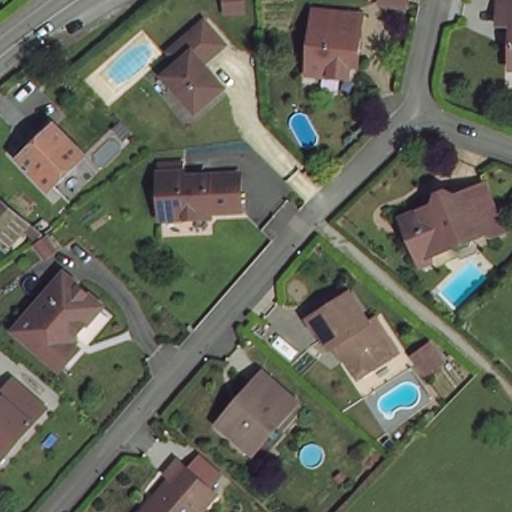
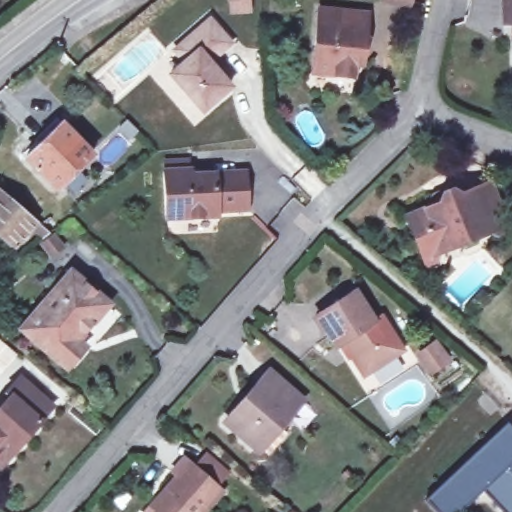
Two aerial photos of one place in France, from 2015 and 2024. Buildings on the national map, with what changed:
unchanged [(223,10),(223,0),(250,0),(251,10),(223,10)]
unchanged [(407,5),(386,0),(408,0),(408,3),(407,5)]
unchanged [(500,27),(500,0),(512,0),(512,27),(500,27)]
unchanged [(366,15),(364,54),(355,54),(353,79),(313,76),(316,10),(366,15)]
unchanged [(211,19),(231,43),(209,62),(231,88),(203,112),(171,75),(186,64),(174,48),(211,19)]
unchanged [(27,160),(60,126),(91,157),(58,189),(27,160)]
unchanged [(247,169),(249,203),(219,205),(219,212),(167,215),(165,166),(193,165),(193,171),(247,169)]
unchanged [(424,242),(412,210),(446,197),(444,192),(446,188),(449,186),(454,185),(459,187),(461,192),(479,184),(495,180),(512,225),(512,232),(494,224),(489,232),(476,236),(475,242),(464,246),(459,242),(441,248),(432,263),(424,242)]
unchanged [(41,240),(28,229),(12,247),(0,236),(0,194),(33,224),(36,220),(50,233),(41,240)]
unchanged [(23,327),(70,270),(109,303),(79,340),(85,345),(68,367),(23,327)]
unchanged [(363,374),(342,342),(336,346),(316,314),(354,289),(374,319),(381,315),(390,328),(402,347),(363,374)]
unchanged [(427,370),(410,347),(432,331),(452,354),(427,370)]
unchanged [(271,375),(306,406),(286,429),(283,425),(259,452),(229,424),(271,375)]
unchanged [(5,462),(0,458),(0,407),(9,396),(6,393),(18,376),(53,405),(5,462)]
new [(481,490),(458,512),(434,512),(424,500),(506,423),(512,429),(512,512),(501,512),(481,490)]
unchanged [(158,500),(181,474),(176,468),(186,456),(225,491),(206,512),(146,512),(158,500)]

